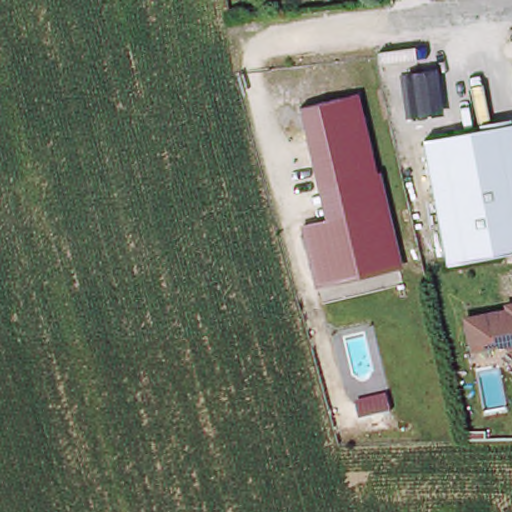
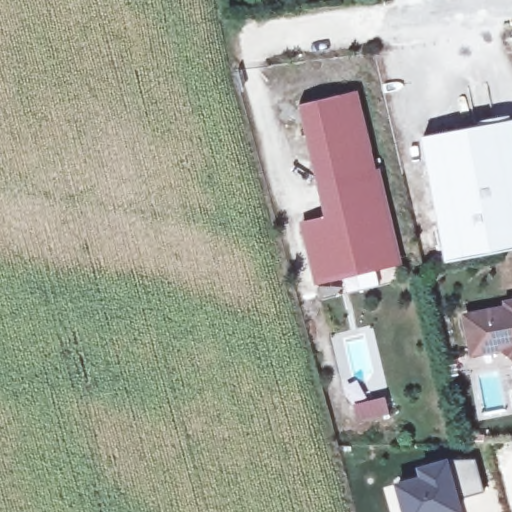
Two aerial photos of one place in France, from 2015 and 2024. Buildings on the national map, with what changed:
unchanged [(355,90),(373,169),(315,183),(296,105),(355,90)]
unchanged [(504,117),(512,156),(512,247),(440,261),(435,241),(414,136),(504,117)]
unchanged [(316,281),(307,245),(302,222),(323,217),(315,183),(373,169),(382,203),(396,261),(316,281)]
unchanged [(512,308),(512,357),(502,348),(473,355),(465,317),(512,308)]
new [(353,415),(385,407),(388,421),(356,429),(353,415)]
new [(416,466),(447,458),(471,458),(479,491),(458,496),(455,486),(448,488),(455,512),(401,512),(393,483),(418,476),(416,466)]

